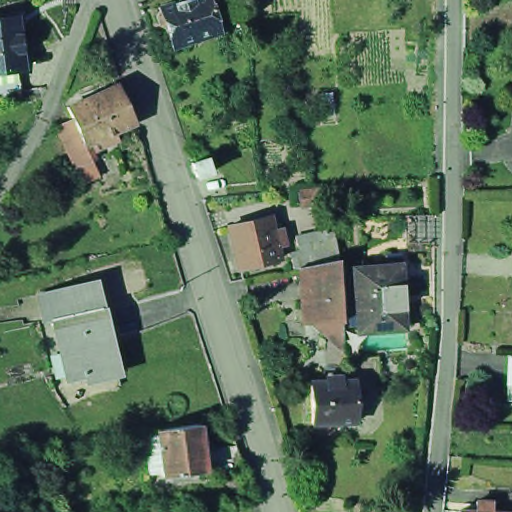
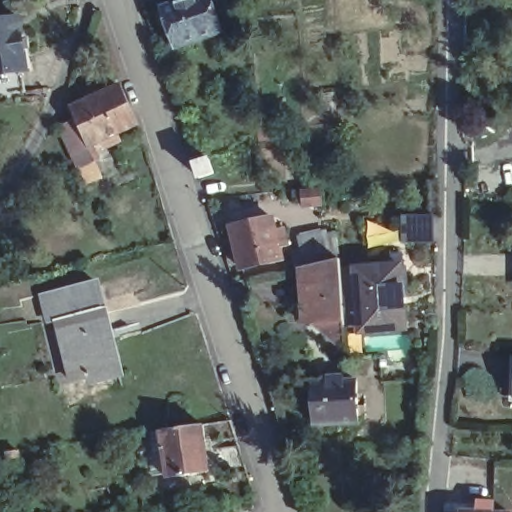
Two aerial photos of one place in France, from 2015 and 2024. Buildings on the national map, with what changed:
unchanged [(169,27),(163,25),(160,16),(163,10),(162,7),(184,0),(212,0),(217,16),(222,32),(202,39),(175,48),(169,27)]
unchanged [(0,18),(10,16),(17,68),(10,69),(12,88),(0,91),(0,18)]
unchanged [(60,128),(76,121),(74,116),(70,118),(68,110),(72,109),(70,107),(118,84),(135,124),(118,132),(121,140),(98,151),(94,143),(88,146),(95,161),(79,168),(60,128)]
unchanged [(210,158),(214,172),(200,177),(195,163),(210,158)]
unchanged [(236,269),(227,227),(267,217),(271,235),(281,233),(284,245),(275,247),(277,259),(236,269)]
unchanged [(305,273),(310,272),(302,241),(329,235),(337,266),(345,264),(349,325),(308,327),(305,273)]
unchanged [(405,270),(410,333),(385,335),(382,272),(405,270)]
unchanged [(365,336),(360,273),(382,272),(385,335),(365,336)]
unchanged [(107,312),(53,325),(47,302),(47,299),(100,285),(100,289),(107,312)]
unchanged [(113,357),(118,355),(124,377),(95,385),(94,379),(75,384),(60,324),(103,314),(113,357)]
unchanged [(345,427),(310,428),(307,386),(323,386),(323,381),(338,380),(338,385),(343,385),(351,385),(352,387),(353,427),(345,427)]
unchanged [(238,469),(205,476),(162,481),(155,435),(197,429),(198,429),(202,457),(233,452),(238,469)]
unchanged [(23,479),(11,481),(6,451),(18,450),(23,479)]
unchanged [(460,510),(477,511),(477,501),(493,502),(492,512),(459,512),(460,510)]

